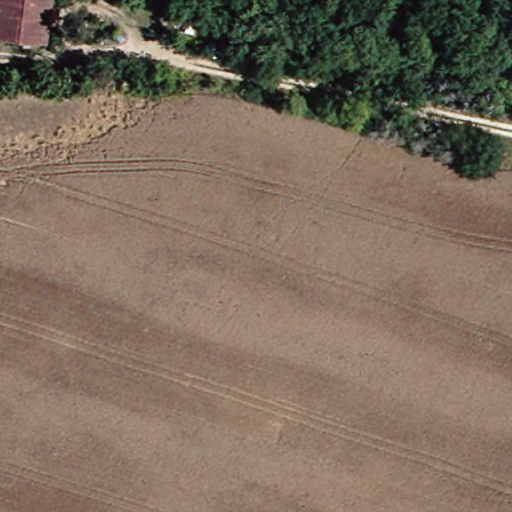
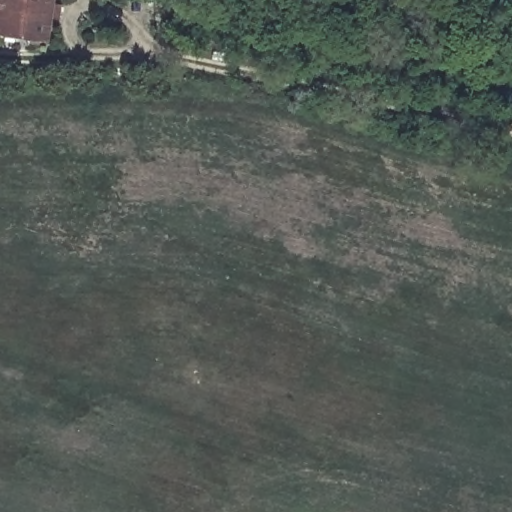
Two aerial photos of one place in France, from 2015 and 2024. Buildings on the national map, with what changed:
unchanged [(51,0),(46,56),(0,50),(0,0),(51,0)]

